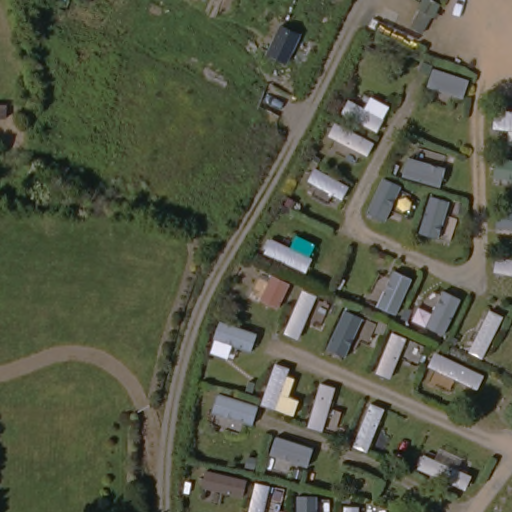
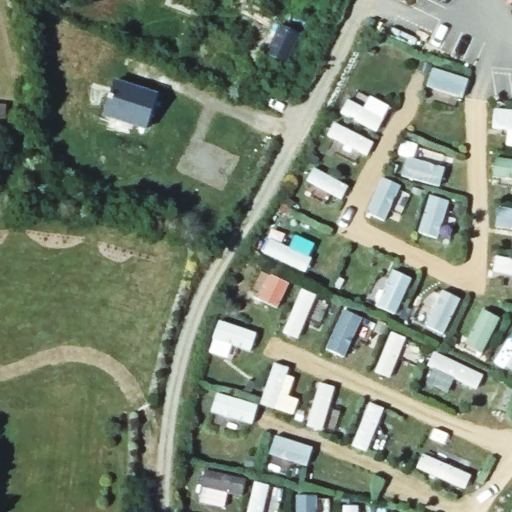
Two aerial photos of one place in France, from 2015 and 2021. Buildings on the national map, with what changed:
unchanged [(440,0),(444,2),(436,17),(419,7),(423,0),(440,0)]
new [(104,115),(114,82),(158,97),(148,129),(104,115)]

